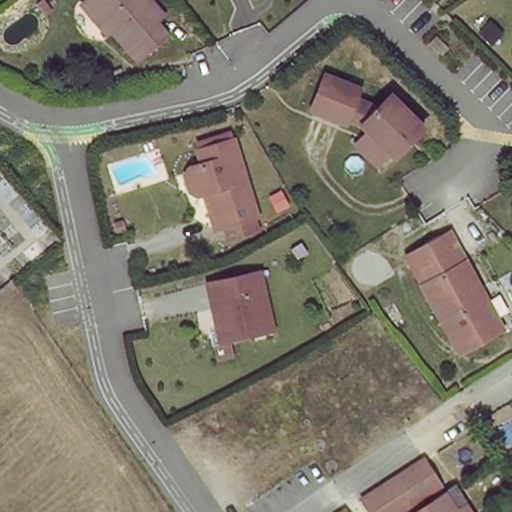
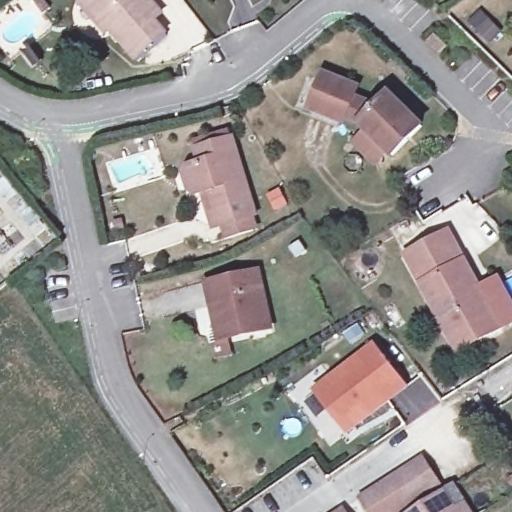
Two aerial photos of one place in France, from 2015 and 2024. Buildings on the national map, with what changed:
unchanged [(153,20),(163,36),(133,58),(82,0),(83,0),(151,0),(162,12),(153,20)]
unchanged [(328,69),(361,85),(355,100),(374,110),(390,96),(420,127),(394,149),(362,120),(347,113),(342,123),(309,105),(328,69)]
unchanged [(217,232),(217,219),(215,219),(215,188),(199,189),(198,155),(212,153),(212,137),(246,135),(248,218),(249,232),(217,232)]
unchanged [(454,349),(405,251),(446,230),(500,327),(454,349)]
unchanged [(207,272),(258,265),(269,324),(211,331),(207,272)]
new [(313,391),(375,344),(409,389),(348,436),(313,391)]
unchanged [(370,512),(361,498),(425,457),(441,482),(393,512),(370,512)]
unchanged [(448,510),(458,505),(463,512),(413,512),(440,495),(448,510)]

